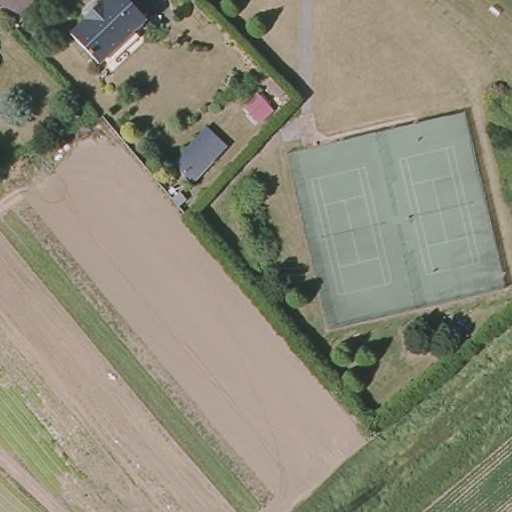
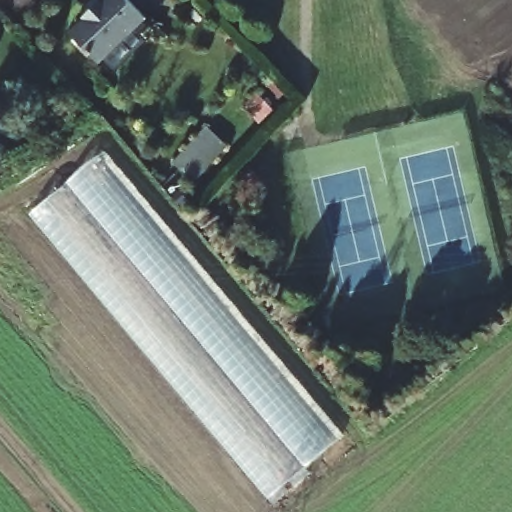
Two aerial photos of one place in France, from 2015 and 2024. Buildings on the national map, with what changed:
unchanged [(79,15),(96,0),(98,0),(99,2),(102,0),(126,0),(141,18),(93,60),(67,31),(82,18),(79,15)]
unchanged [(228,145),(191,183),(171,162),(206,124),(228,145)]
new [(337,441),(269,499),(29,214),(104,151),(337,441)]

